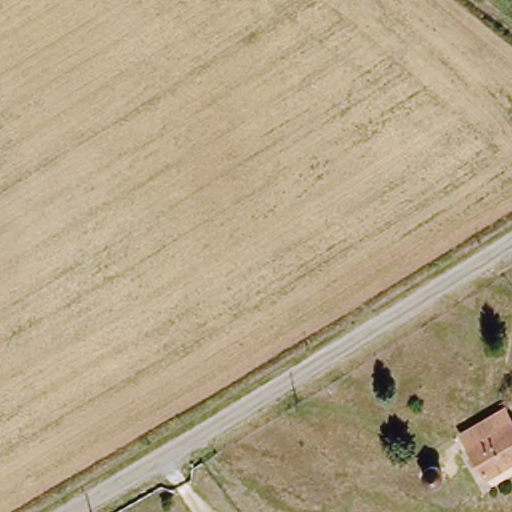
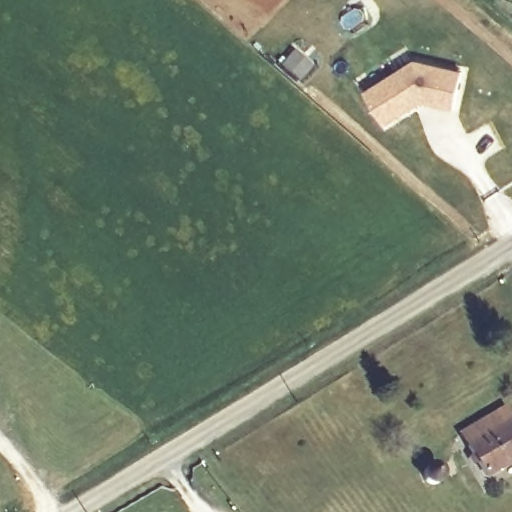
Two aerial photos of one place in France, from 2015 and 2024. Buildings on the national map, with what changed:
new [(422,64),(467,74),(460,110),(428,104),(392,128),(371,97),(422,64)]
unchanged [(487,480),(470,451),(464,439),(510,414),(512,416),(512,465),(487,480)]
unchanged [(451,475),(446,481),(441,484),(435,483),(432,479),(431,472),(434,466),(440,462),(446,463),(450,467),(451,475)]

